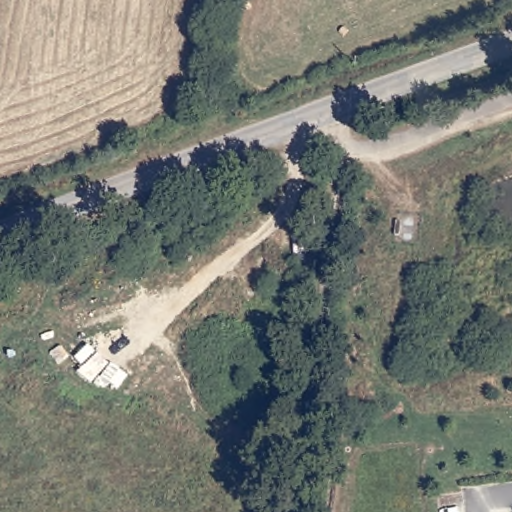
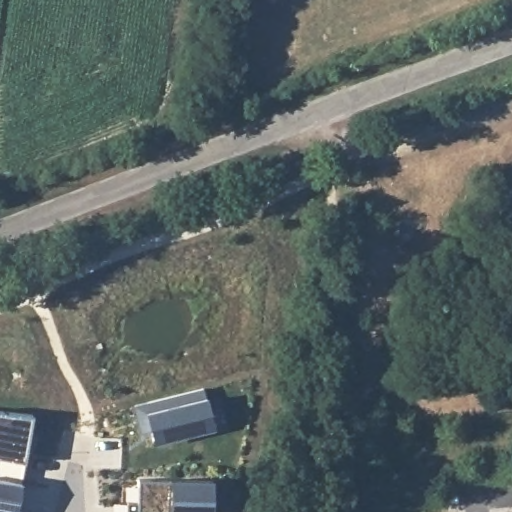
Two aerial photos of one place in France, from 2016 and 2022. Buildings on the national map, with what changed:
new [(201,388),(217,429),(152,445),(149,435),(138,436),(132,405),(201,388)]
new [(31,412),(22,460),(23,460),(19,480),(0,477),(0,409),(31,412)]
new [(19,480),(13,512),(0,512),(0,477),(19,480)]
new [(122,500),(132,500),(133,477),(208,480),(207,512),(168,512),(122,512),(122,500)]

